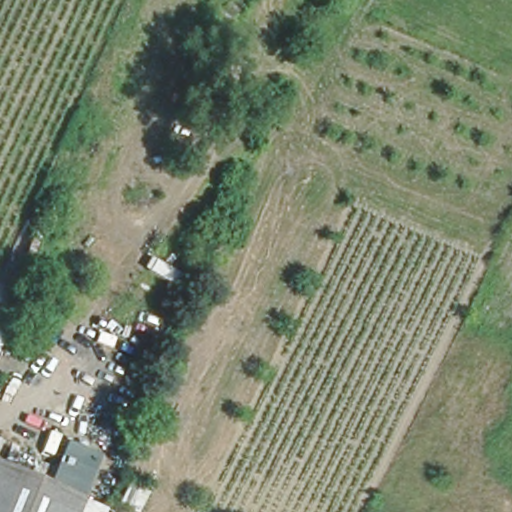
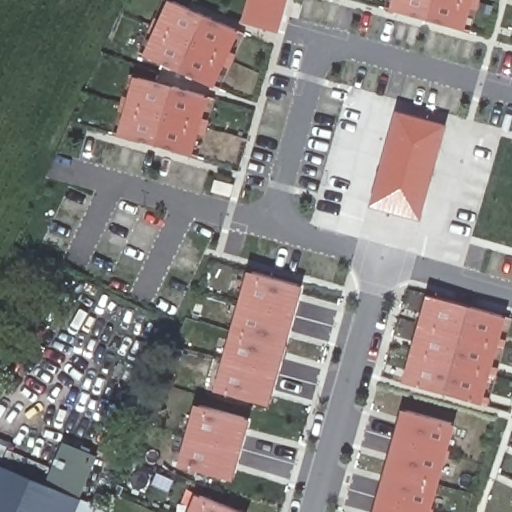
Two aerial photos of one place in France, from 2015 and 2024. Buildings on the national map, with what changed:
new [(232,33),(209,86),(136,53),(160,0),(161,0),(232,33)]
new [(275,34),(238,21),(244,0),(283,0),(275,34)]
new [(458,29),(384,9),(386,0),(465,0),(458,29)]
new [(202,96),(187,156),(110,135),(125,75),(202,96)]
new [(438,125),(414,220),(367,206),(388,110),(438,125)]
new [(295,285),(264,405),(208,388),(240,271),(295,285)]
new [(500,315),(476,403),(397,382),(421,294),(500,315)]
unchanged [(0,315),(9,318),(0,340),(0,315)]
new [(243,420),(228,482),(170,464),(186,405),(243,420)]
new [(423,512),(367,512),(394,410),(446,424),(423,512)]
unchanged [(76,512),(0,512),(0,459),(84,494),(76,512)]
new [(188,512),(196,492),(243,512),(188,512)]
unchanged [(100,512),(76,512),(84,494),(104,502),(100,512)]

